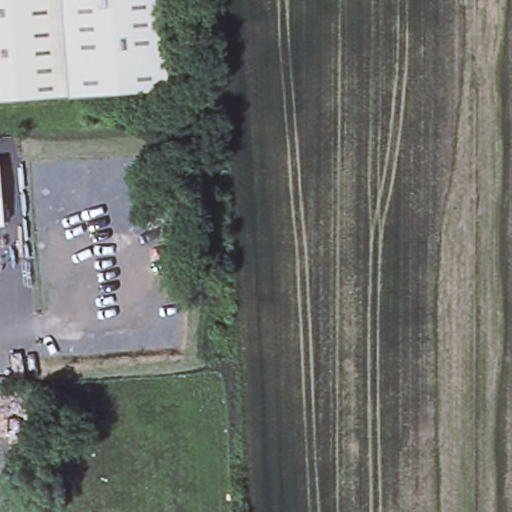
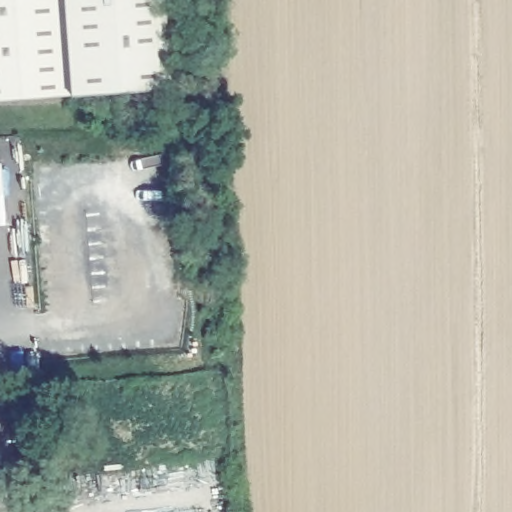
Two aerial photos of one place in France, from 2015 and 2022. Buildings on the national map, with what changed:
unchanged [(0,101),(0,0),(167,0),(174,87),(0,101)]
unchanged [(1,160),(6,224),(0,224),(0,161),(1,160)]

